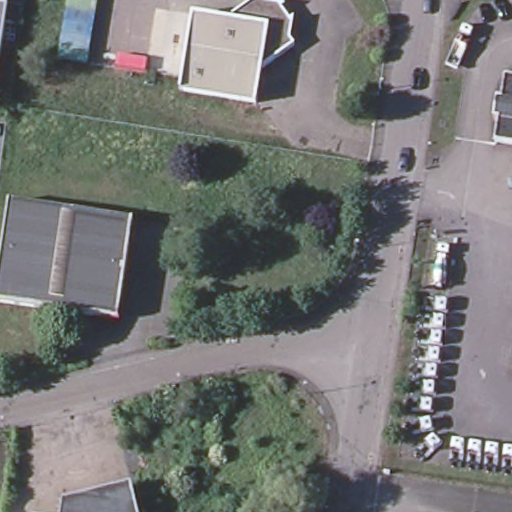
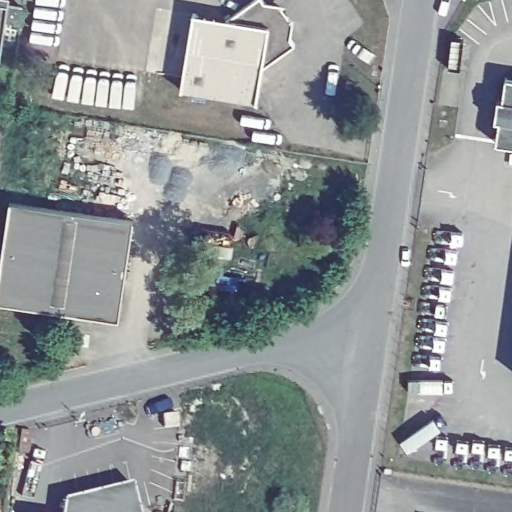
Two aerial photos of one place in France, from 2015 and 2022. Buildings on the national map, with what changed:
unchanged [(22,6),(19,25),(5,23),(0,57),(0,0),(8,0),(7,5),(22,6)]
unchanged [(278,6),(290,26),(282,31),(295,49),(261,71),(226,21),(255,0),(262,0),(270,12),(278,6)]
unchanged [(255,105),(179,91),(192,17),(226,21),(261,71),(255,105)]
unchanged [(494,148),(503,81),(512,82),(512,151),(494,148)]
unchanged [(87,318),(84,314),(0,300),(0,252),(9,199),(132,222),(117,321),(87,318)]
unchanged [(63,503),(130,485),(136,512),(62,512),(63,503)]

